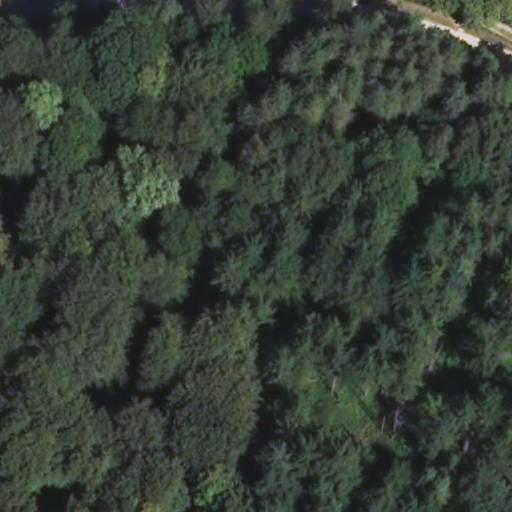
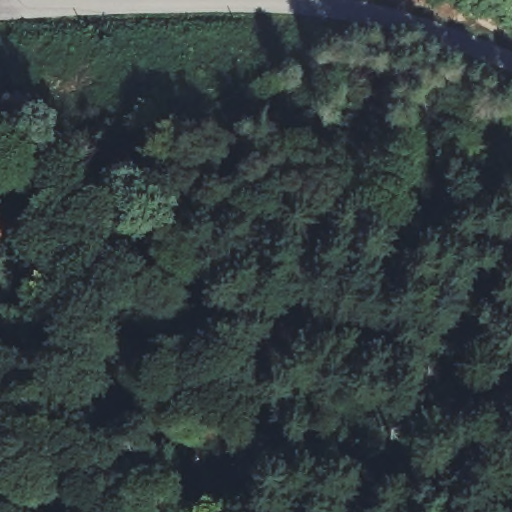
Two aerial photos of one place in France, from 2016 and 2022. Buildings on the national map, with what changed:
[]

